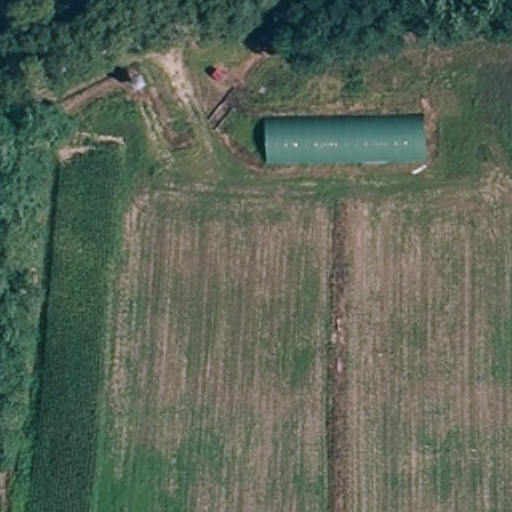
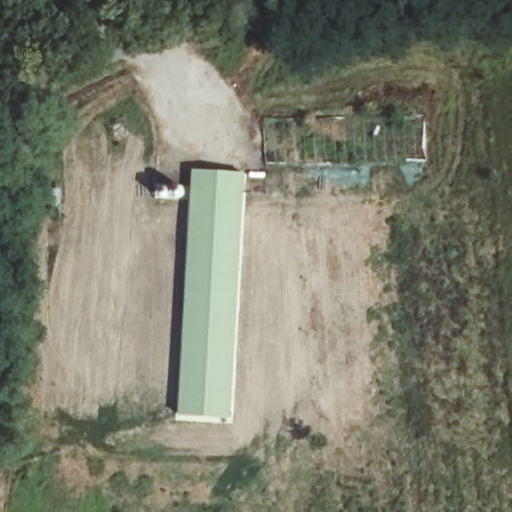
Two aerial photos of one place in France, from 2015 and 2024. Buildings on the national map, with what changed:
unchanged [(107,75),(119,70),(124,82),(113,87),(107,75)]
new [(245,175),(231,419),(179,416),(192,171),(245,175)]

